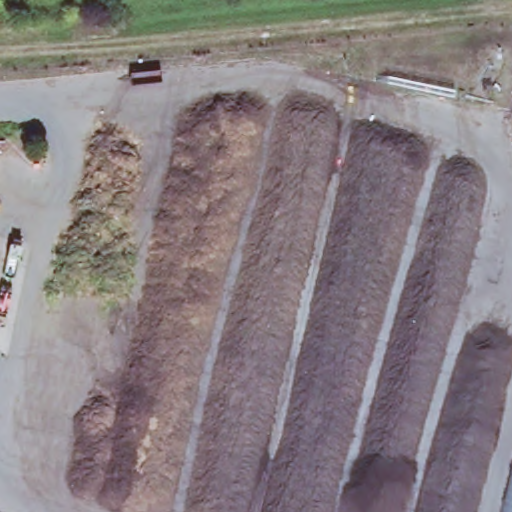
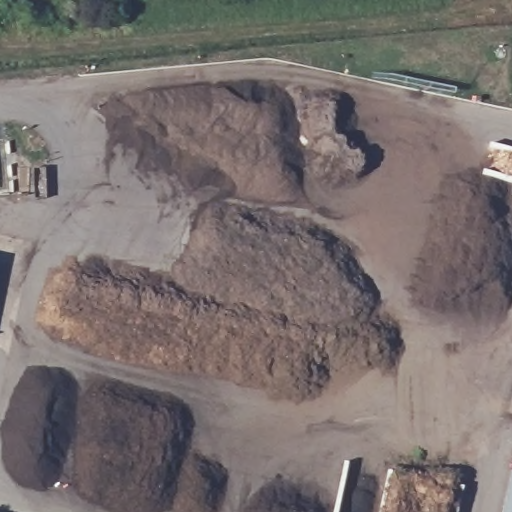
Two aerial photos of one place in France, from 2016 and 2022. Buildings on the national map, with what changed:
unchanged [(511,512),(512,507),(512,512),(511,512)]

